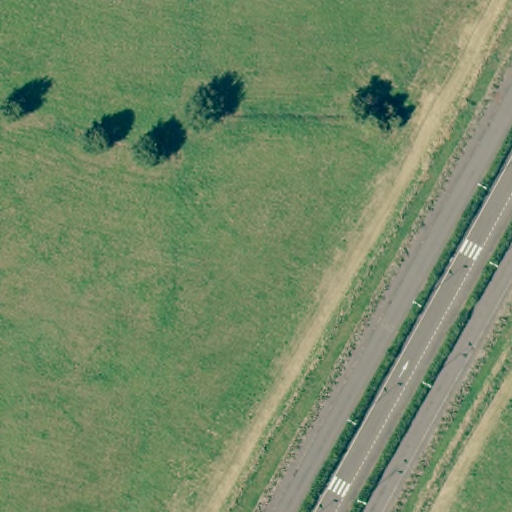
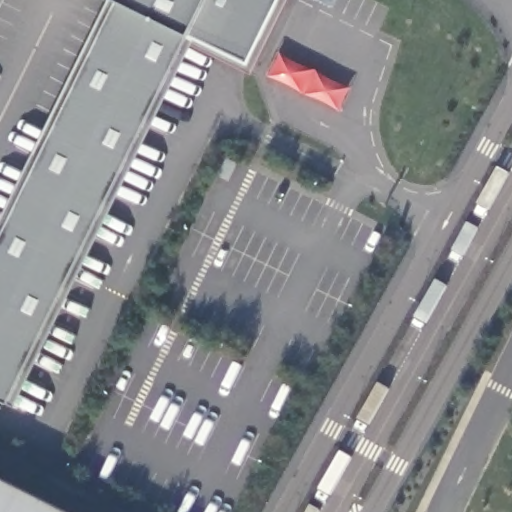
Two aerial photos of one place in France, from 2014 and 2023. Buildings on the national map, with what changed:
new [(0,10),(0,0),(5,0),(0,10)]
new [(251,72),(192,44),(13,404),(0,398),(0,223),(109,0),(288,0),(251,72)]

